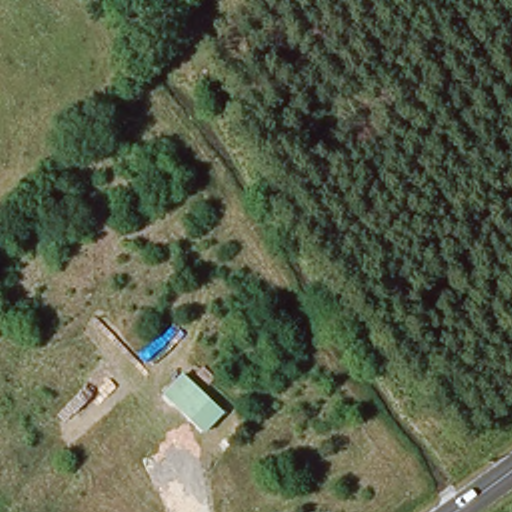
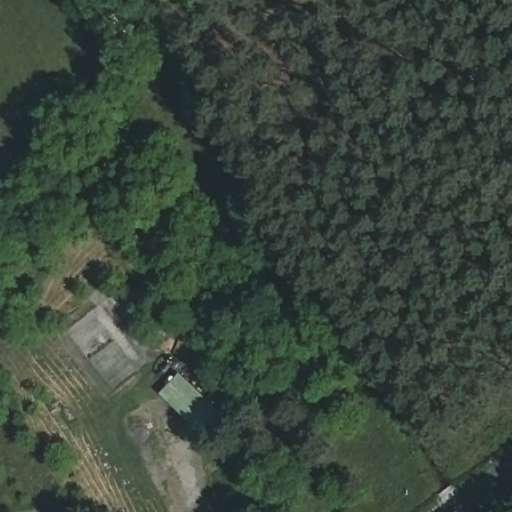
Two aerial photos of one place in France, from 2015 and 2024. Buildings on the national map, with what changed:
unchanged [(203,431),(162,393),(182,371),(223,411),(203,431)]

